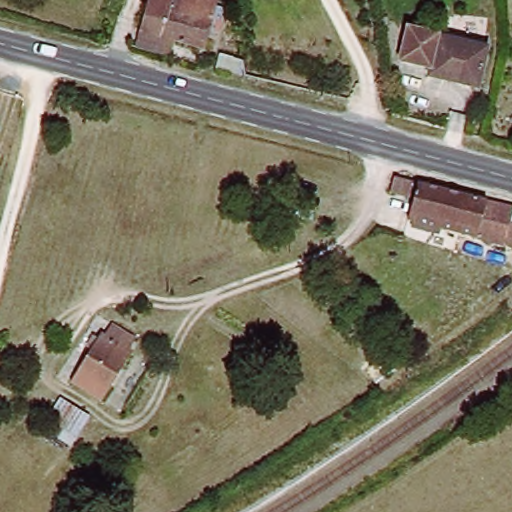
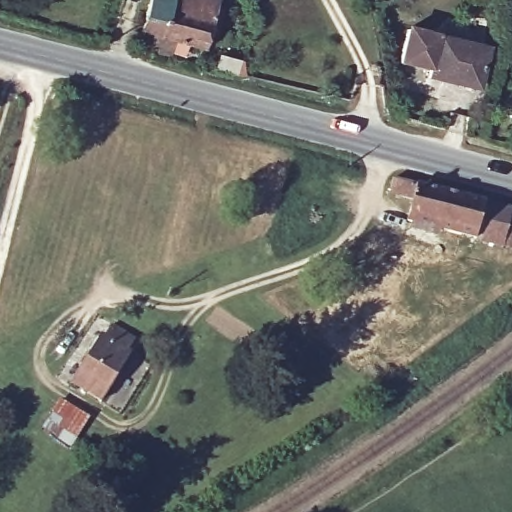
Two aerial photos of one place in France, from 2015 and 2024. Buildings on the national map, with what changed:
unchanged [(213,10),(200,54),(137,36),(149,0),(181,0),(213,10)]
unchanged [(380,30),(380,16),(395,17),(394,30),(380,30)]
unchanged [(440,31),(438,37),(487,47),(478,86),(432,77),(433,67),(410,65),(402,63),(410,28),(412,28),(440,31)]
unchanged [(505,249),(402,221),(407,201),(392,197),(397,181),(412,186),(512,213),(512,230),(511,229),(505,249)]
unchanged [(101,406),(70,387),(102,338),(105,340),(112,328),(135,341),(127,354),(132,357),(101,406)]
unchanged [(57,399),(87,418),(70,447),(40,428),(57,399)]

